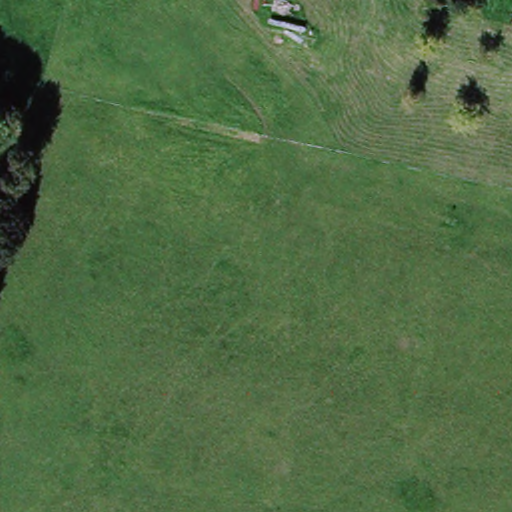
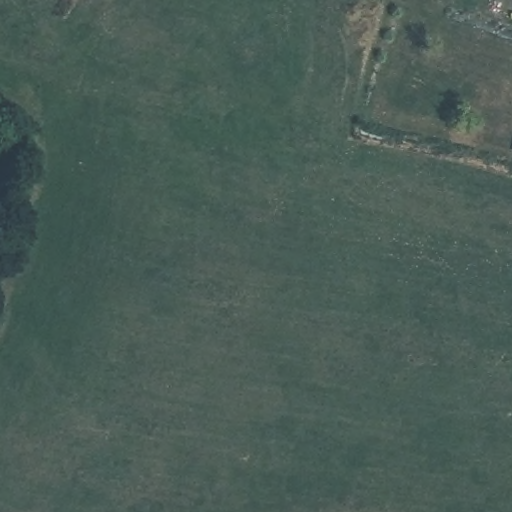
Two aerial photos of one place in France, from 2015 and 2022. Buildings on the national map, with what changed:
[]

